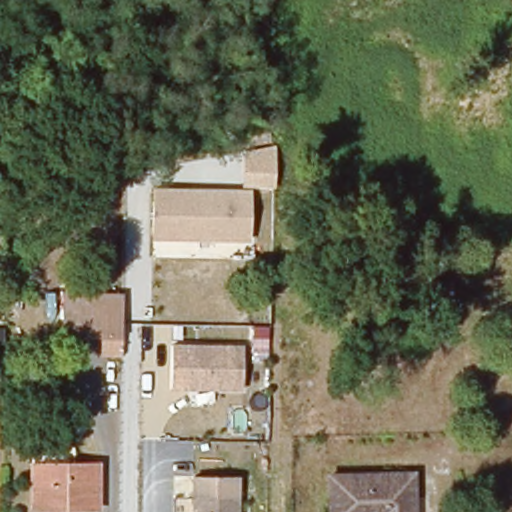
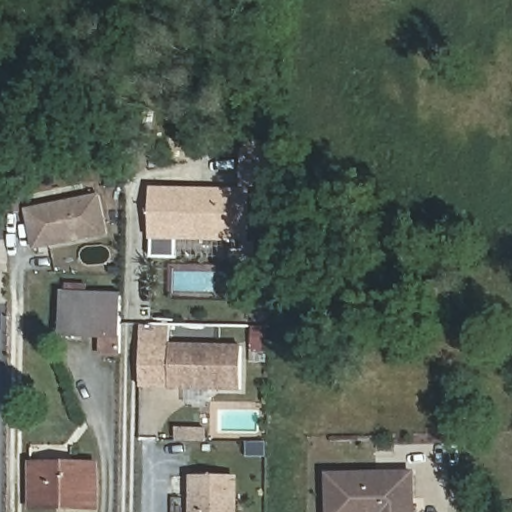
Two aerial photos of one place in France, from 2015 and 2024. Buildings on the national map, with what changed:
unchanged [(152,189),(243,187),(245,151),(276,146),(275,190),(252,190),(251,241),(152,241),(152,189)]
new [(102,193),(111,235),(35,251),(25,209),(102,193)]
unchanged [(56,296),(110,294),(112,341),(84,336),(58,337),(58,332),(56,296)]
new [(172,325),(173,342),(174,388),(140,387),(141,325),(172,325)]
new [(268,328),(269,364),(252,364),(251,328),(268,328)]
unchanged [(246,344),(246,389),(174,388),(173,342),(246,344)]
unchanged [(33,509),(32,464),(100,462),(100,511),(33,509)]
unchanged [(412,475),(412,512),(334,512),(334,472),(412,475)]
unchanged [(237,495),(238,512),(193,512),(192,498),(237,495)]

